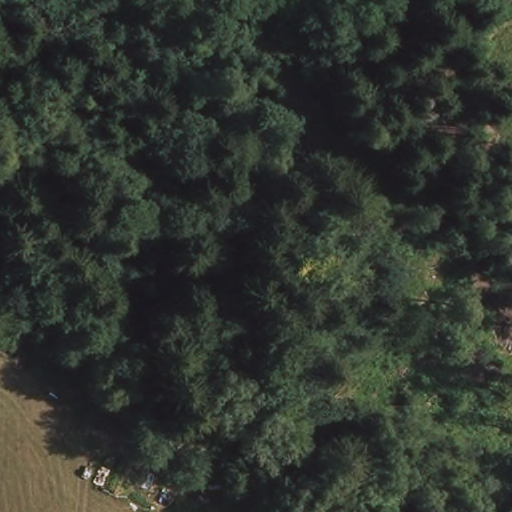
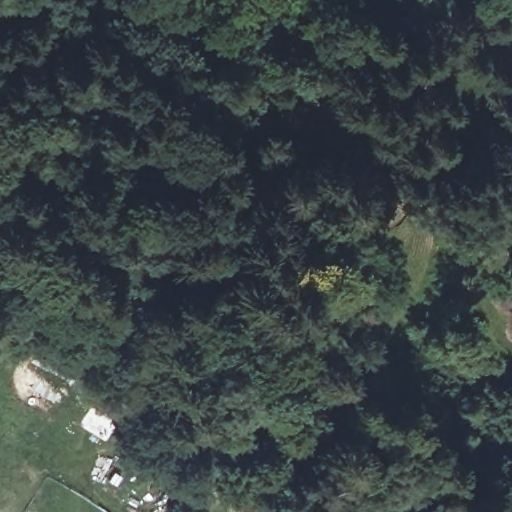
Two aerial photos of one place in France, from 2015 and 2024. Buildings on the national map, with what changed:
[]

